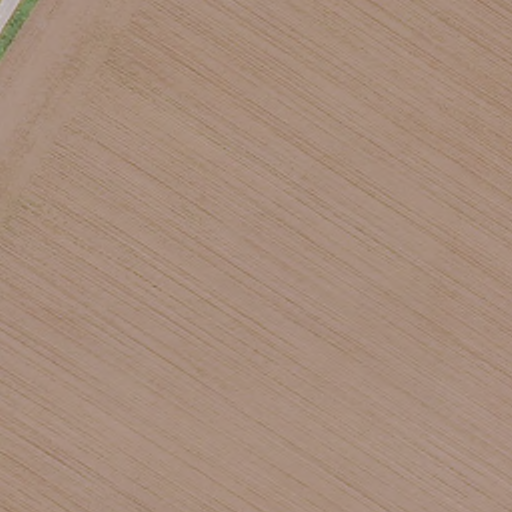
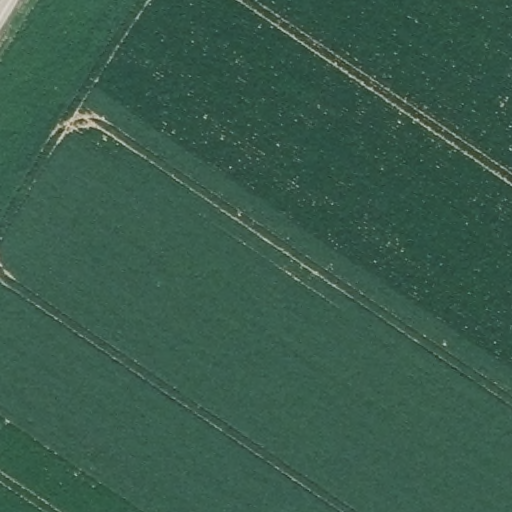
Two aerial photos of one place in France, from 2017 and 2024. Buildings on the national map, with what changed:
[]

